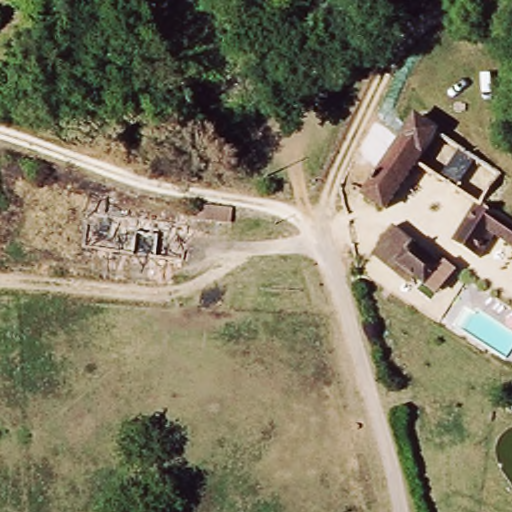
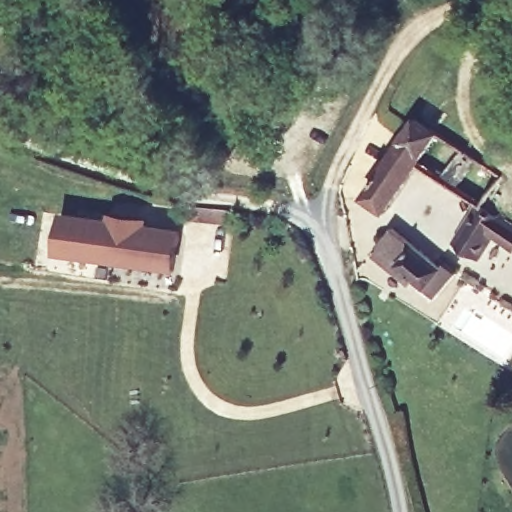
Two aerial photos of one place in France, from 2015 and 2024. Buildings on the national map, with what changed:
unchanged [(358,196),(413,115),(438,131),(384,213),(358,196)]
unchanged [(491,239),(479,258),(452,241),(477,200),(512,224),(512,252),(491,239)]
unchanged [(231,221),(191,215),(192,205),(233,209),(231,221)]
new [(62,211),(106,216),(107,211),(150,217),(150,222),(182,228),(174,270),(56,251),(62,211)]
demolished [(75,246),(81,211),(183,229),(177,264),(75,246)]
unchanged [(418,284),(409,286),(371,259),(392,226),(455,268),(434,297),(418,284)]

